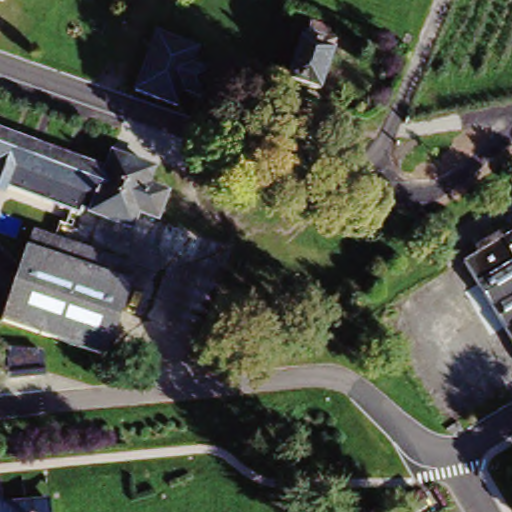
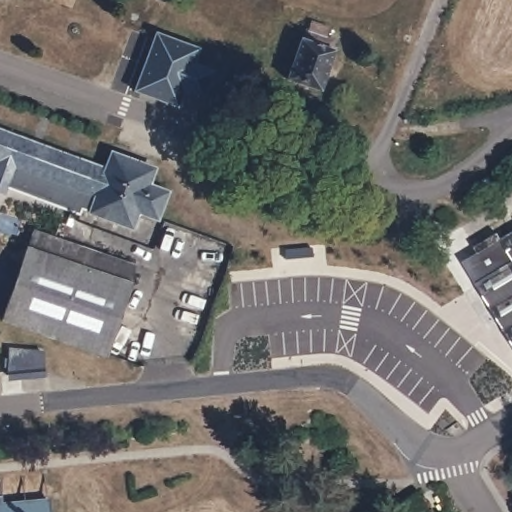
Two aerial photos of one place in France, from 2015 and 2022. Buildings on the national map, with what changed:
unchanged [(134,90),(155,35),(195,50),(190,65),(209,72),(200,99),(182,91),(177,106),(134,90)]
unchanged [(298,44),(302,45),(307,35),(332,44),(328,54),(332,55),(317,96),(283,82),(298,44)]
unchanged [(3,133),(103,171),(105,166),(110,154),(119,157),(151,170),(145,185),(164,192),(164,194),(154,220),(134,213),(123,240),(84,225),(88,216),(95,197),(10,166),(4,181),(0,180),(0,132),(3,133)]
unchanged [(82,215),(3,185),(4,181),(10,166),(95,197),(88,216),(82,215)]
unchanged [(137,271),(101,360),(0,320),(0,315),(34,230),(137,271)]
unchanged [(457,263),(512,231),(512,350),(457,263)]
unchanged [(5,243),(0,253),(0,241),(5,243)]
unchanged [(424,512),(409,512),(407,506),(412,503),(423,496),(430,508),(424,512)]
unchanged [(43,497),(45,512),(0,512),(0,501),(43,497)]

